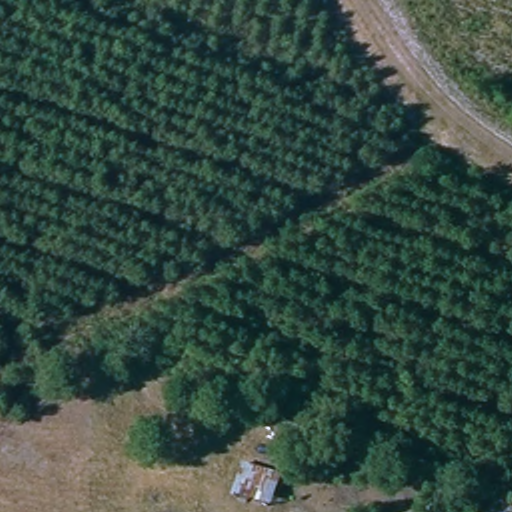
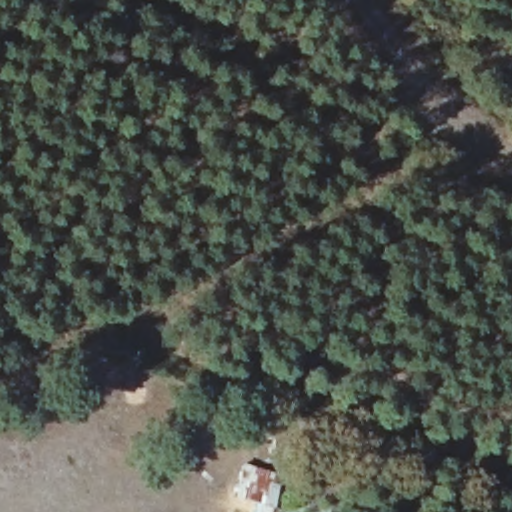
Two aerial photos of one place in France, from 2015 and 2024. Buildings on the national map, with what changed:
unchanged [(271,502),(236,491),(244,458),(280,466),(271,502)]

